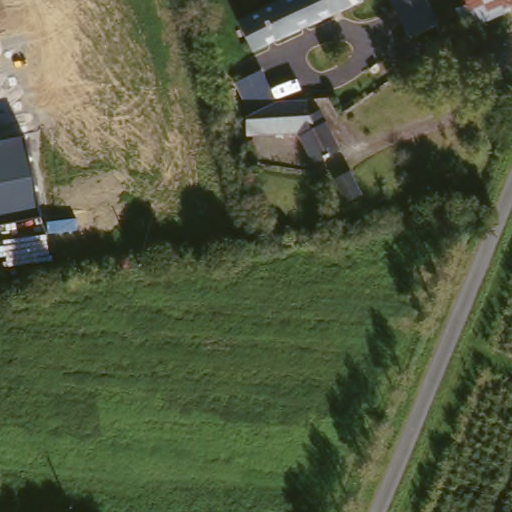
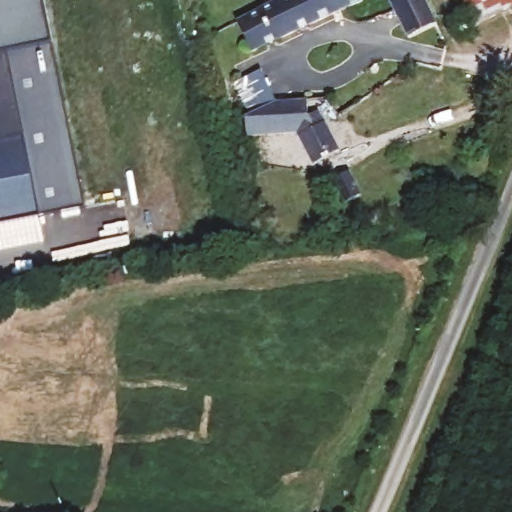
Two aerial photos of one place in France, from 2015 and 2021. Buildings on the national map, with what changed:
new [(87,207),(41,216),(24,136),(0,141),(0,0),(43,0),(53,45),(87,207)]
unchanged [(287,0),(361,0),(358,1),(360,6),(256,54),(242,20),(261,12),(287,0)]
unchanged [(407,37),(390,0),(425,0),(437,24),(407,37)]
unchanged [(477,27),(476,23),(463,28),(458,12),(468,7),(466,0),(512,0),(512,12),(477,27)]
unchanged [(317,110),(328,106),(333,118),(346,146),(316,159),(303,129),(251,135),(248,112),(258,107),(243,76),(268,64),(283,95),(286,94),(312,91),(314,103),(317,110)]
unchanged [(41,216),(0,225),(0,141),(24,136),(41,216)]
unchanged [(356,195),(343,200),(339,202),(328,179),(338,175),(345,172),(356,195)]

